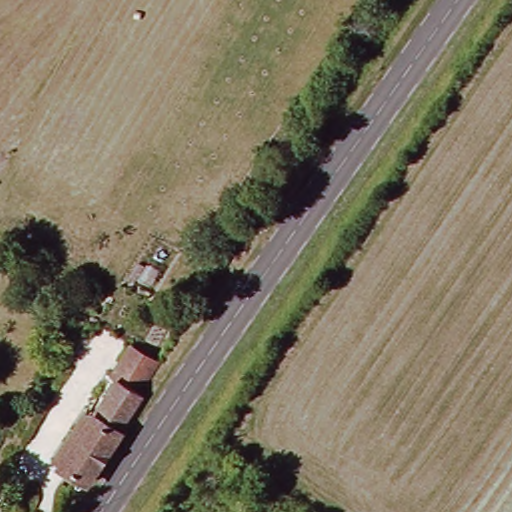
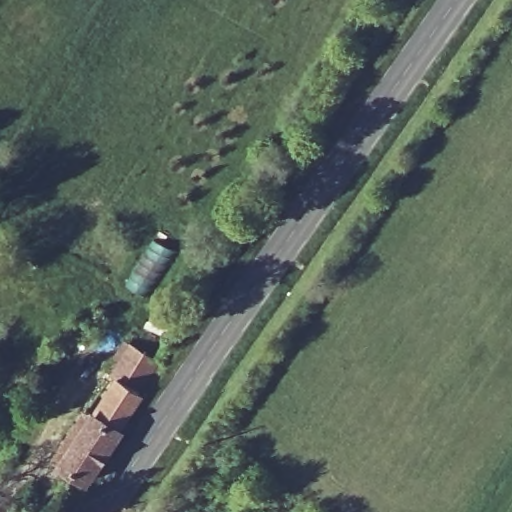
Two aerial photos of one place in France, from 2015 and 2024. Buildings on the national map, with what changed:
unchanged [(174,252),(146,296),(124,282),(151,237),(174,252)]
unchanged [(102,412),(123,376),(118,372),(135,344),(166,363),(149,395),(130,429),(94,486),(61,465),(97,407),(102,412)]

